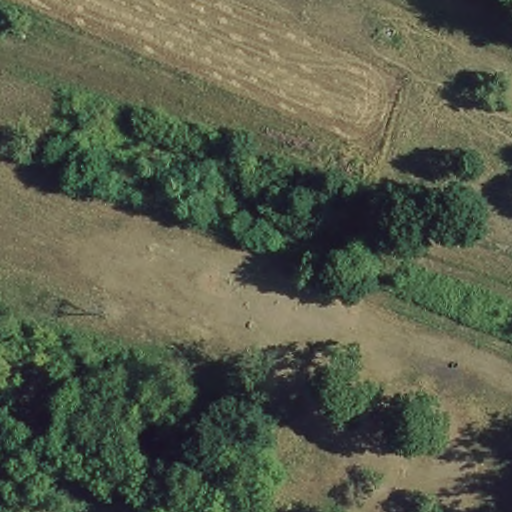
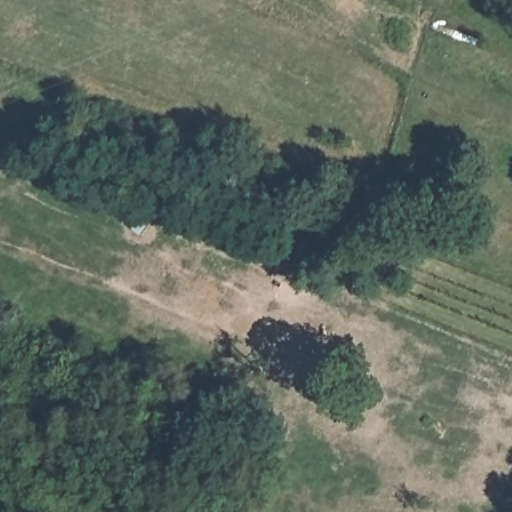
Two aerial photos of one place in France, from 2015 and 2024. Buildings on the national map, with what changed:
[]

